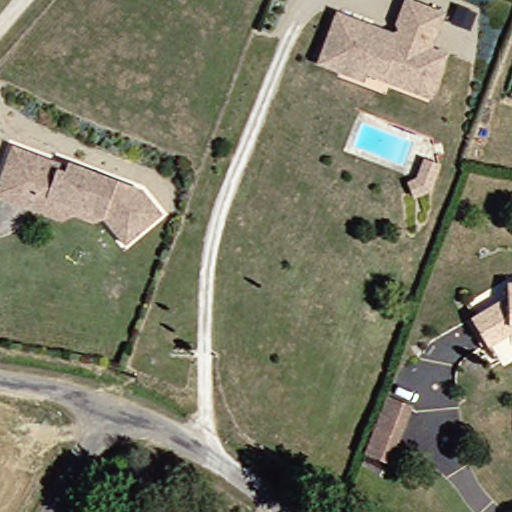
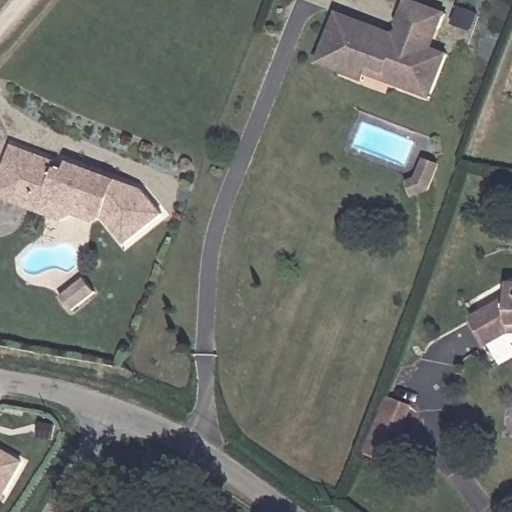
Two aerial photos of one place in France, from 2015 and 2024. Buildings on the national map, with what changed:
unchanged [(404,88),(387,81),(366,73),(362,81),(316,62),(318,54),(335,11),(392,33),(397,30),(395,24),(404,0),(413,0),(443,12),(437,28),(430,48),(446,54),(431,92),(429,98),(404,88)]
unchanged [(5,145),(60,164),(61,160),(136,186),(155,210),(119,239),(97,215),(28,190),(25,200),(0,191),(0,160),(5,145)]
unchanged [(394,184),(403,178),(410,159),(426,166),(415,190),(400,197),(394,184)]
unchanged [(25,200),(28,190),(97,215),(87,222),(66,215),(53,219),(0,199),(0,191),(25,200)]
unchanged [(479,343),(461,315),(497,292),(497,278),(512,279),(512,329),(501,328),(479,343)]
unchanged [(363,453),(383,397),(406,406),(386,460),(363,453)]
new [(19,461),(0,494),(0,451),(19,461)]

